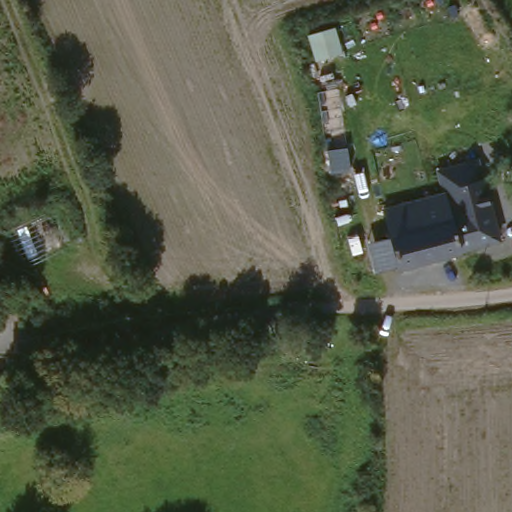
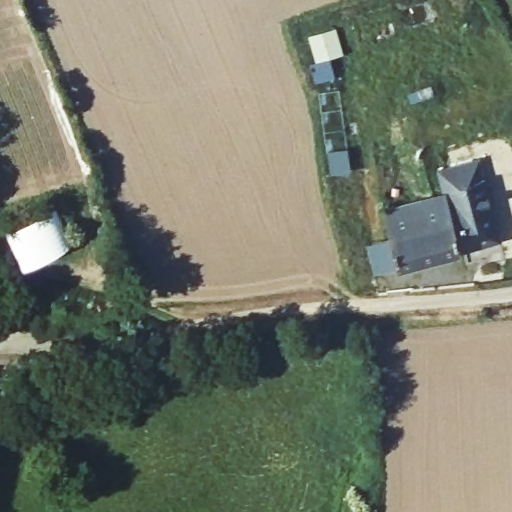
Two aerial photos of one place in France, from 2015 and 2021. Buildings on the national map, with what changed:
unchanged [(385,205),(446,189),(440,166),(481,156),(502,236),(400,263),(385,205)]
demolished [(69,245),(24,268),(5,233),(51,210),(69,245)]

